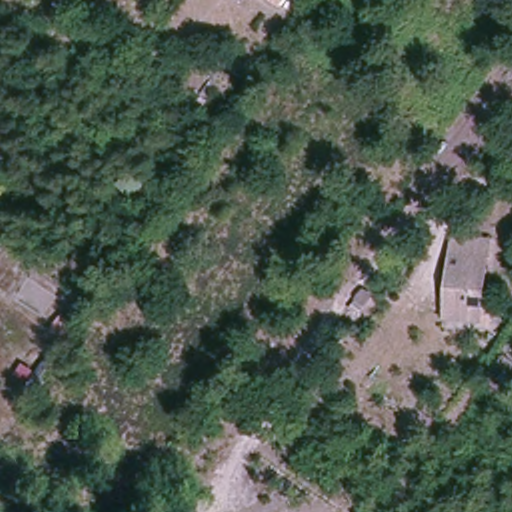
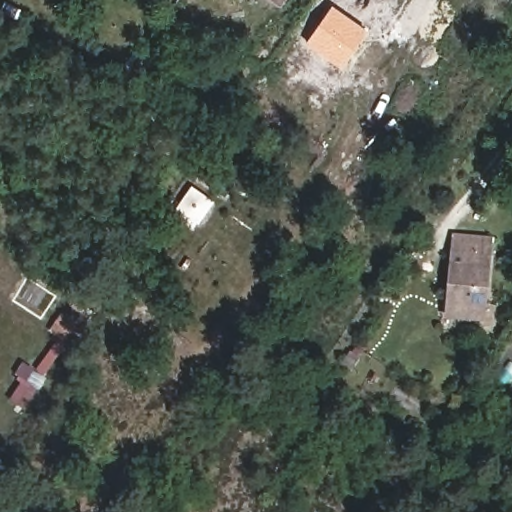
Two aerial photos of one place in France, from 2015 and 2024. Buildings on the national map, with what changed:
unchanged [(275,0),(286,0),(282,5),(275,0)]
new [(309,40),(333,7),(368,31),(344,65),(309,40)]
unchanged [(488,307),(495,308),(494,328),(482,327),(481,323),(447,320),(454,236),(494,239),(488,307)]
new [(25,382),(17,376),(25,364),(37,372),(28,384),(39,391),(26,411),(11,402),(25,382)]

